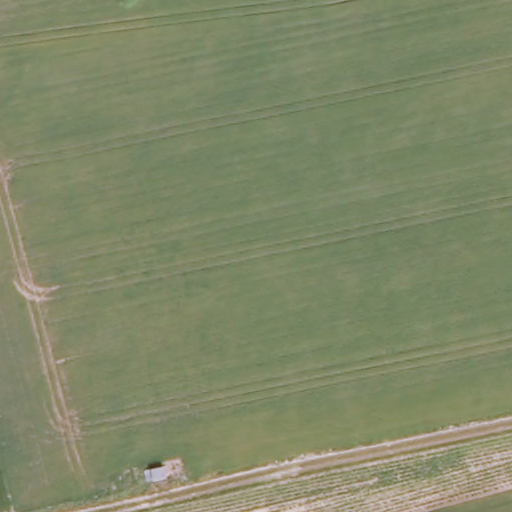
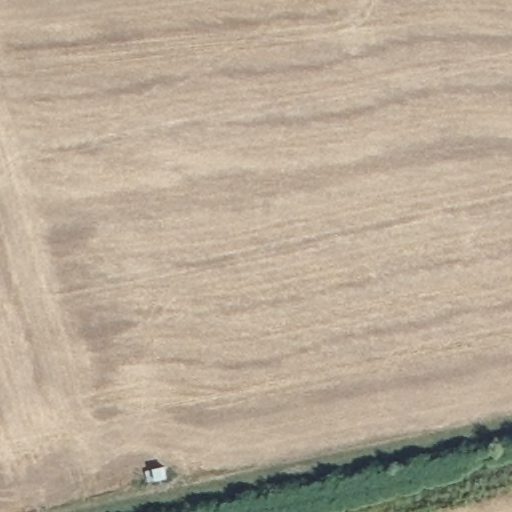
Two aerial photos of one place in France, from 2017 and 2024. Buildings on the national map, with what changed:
unchanged [(159,457),(161,468),(144,472),(142,461),(159,457)]

